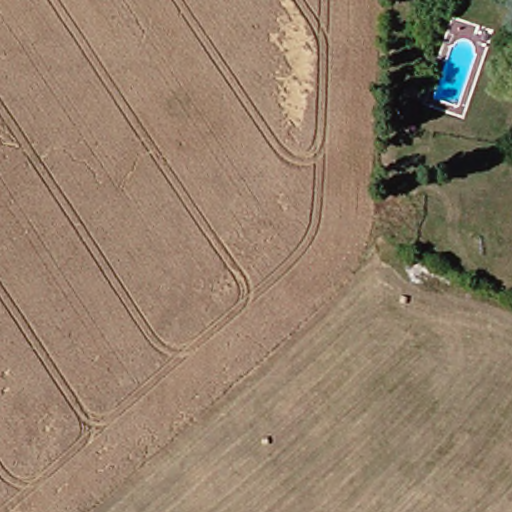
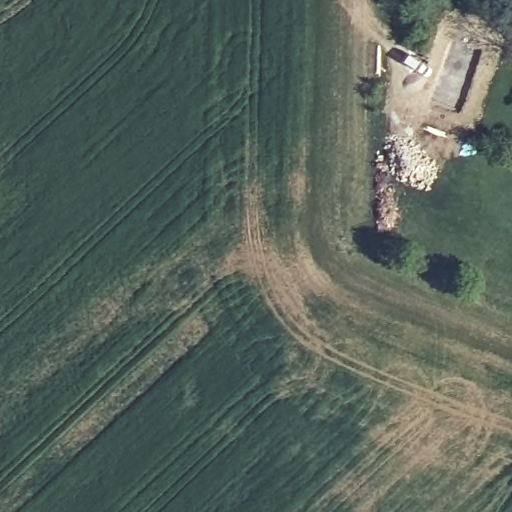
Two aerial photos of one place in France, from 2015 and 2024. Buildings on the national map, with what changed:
unchanged [(408,99),(411,76),(420,78),(427,79),(424,103),(420,102),(408,99)]

